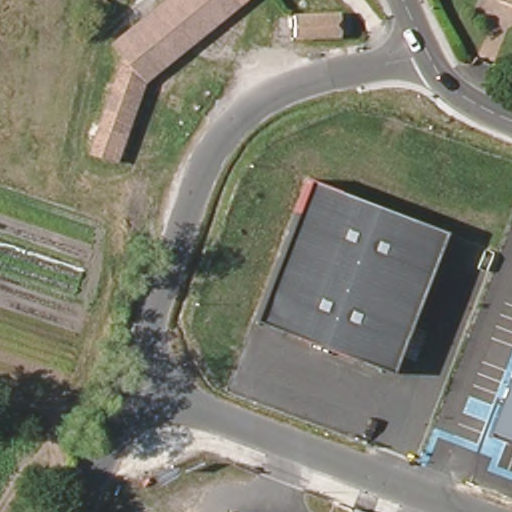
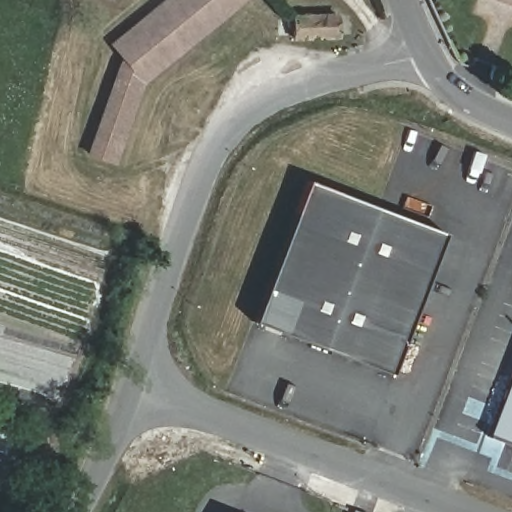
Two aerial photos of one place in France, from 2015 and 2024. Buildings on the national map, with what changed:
unchanged [(146,82),(116,161),(89,153),(126,58),(113,43),(164,0),(240,0),(146,82)]
unchanged [(501,0),(512,0),(512,4),(501,0)]
unchanged [(333,19),(333,38),(291,39),(292,18),(333,19)]
unchanged [(309,180),(446,232),(392,373),(254,321),(309,180)]
unchanged [(489,434),(512,374),(512,443),(489,434)]

